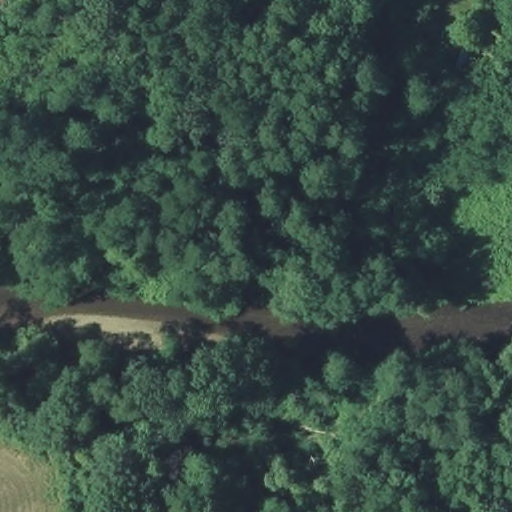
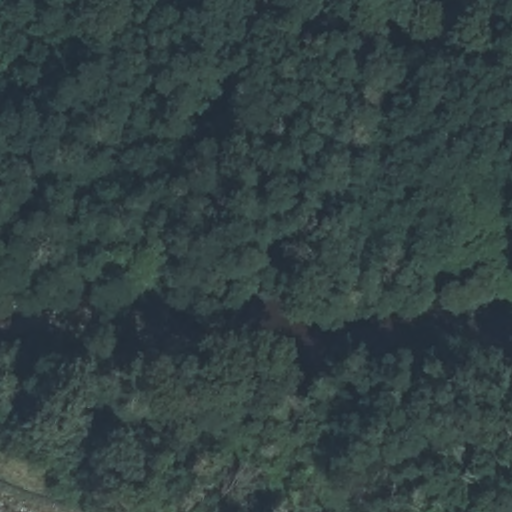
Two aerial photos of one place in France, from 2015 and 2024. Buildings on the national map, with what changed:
unchanged [(481,70),(462,65),(469,34),(489,38),(481,70)]

